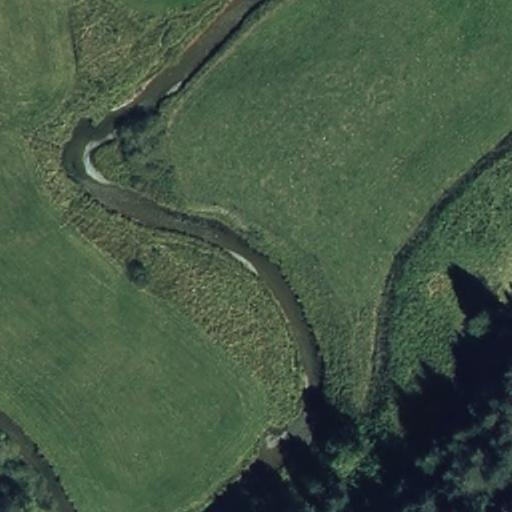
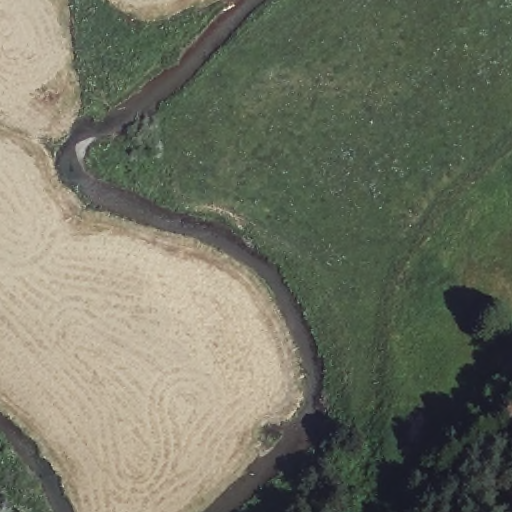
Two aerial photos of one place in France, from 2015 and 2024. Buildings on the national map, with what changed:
unchanged [(509,372),(488,393),(473,378),(495,357),(509,372)]

